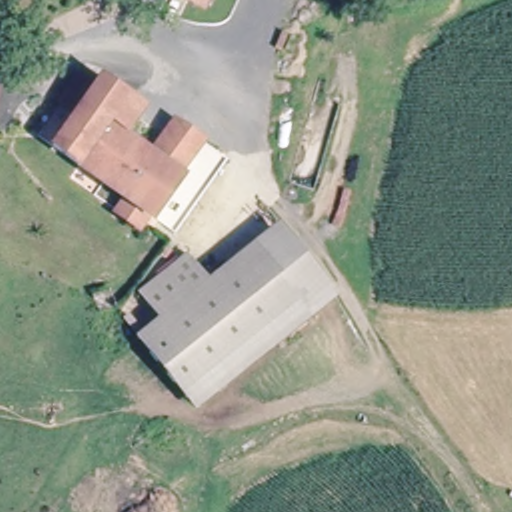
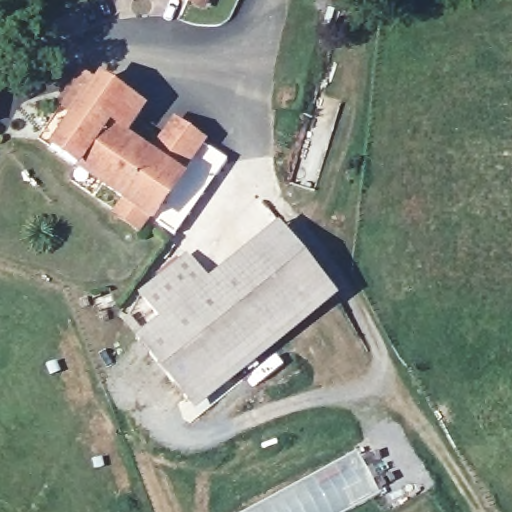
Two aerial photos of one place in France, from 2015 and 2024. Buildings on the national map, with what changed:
unchanged [(191,0),(208,0),(205,6),(191,0)]
unchanged [(75,169),(74,169),(47,150),(71,115),(55,103),(77,72),(93,83),(94,82),(117,99),(136,112),(118,137),(140,152),(142,149),(148,152),(158,138),(169,124),(191,140),(197,144),(222,162),(212,176),(192,162),(150,222),(144,217),(135,230),(112,214),(116,209),(121,202),(75,169)]
unchanged [(150,222),(192,162),(212,176),(170,236),(150,222)]
unchanged [(250,254),(275,235),(325,297),(300,317),(250,254)]
unchanged [(132,348),(156,330),(134,302),(183,264),(203,291),(250,254),(300,317),(182,411),(132,348)]
unchanged [(300,317),(325,297),(331,307),(189,420),(182,411),(300,317)]
new [(357,450),(380,495),(347,512),(240,512),(270,497),(357,450)]

